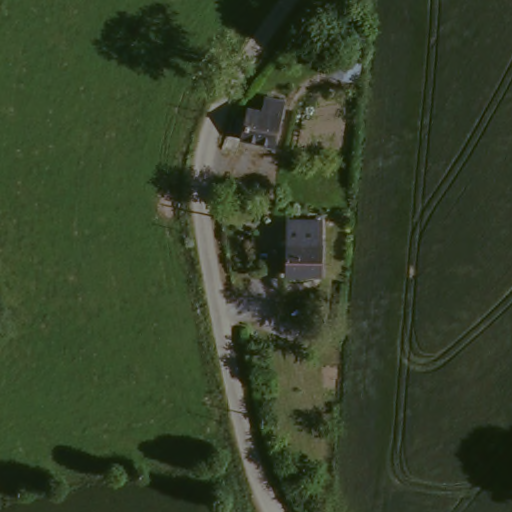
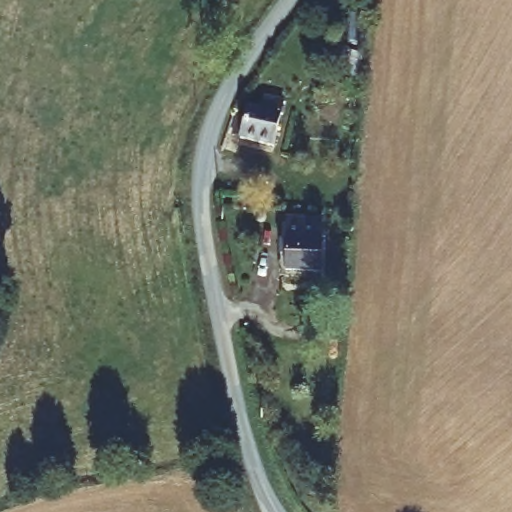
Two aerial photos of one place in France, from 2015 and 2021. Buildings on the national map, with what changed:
unchanged [(268,109),(270,98),(289,100),(280,142),(236,134),(241,112),(252,114),(253,108),(268,109)]
unchanged [(324,272),(295,269),(296,215),(327,218),(324,272)]

